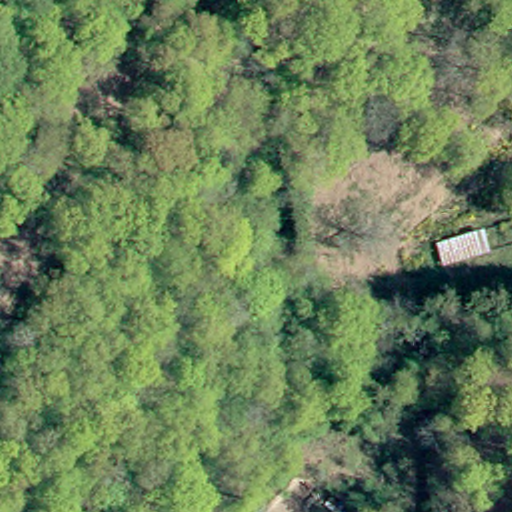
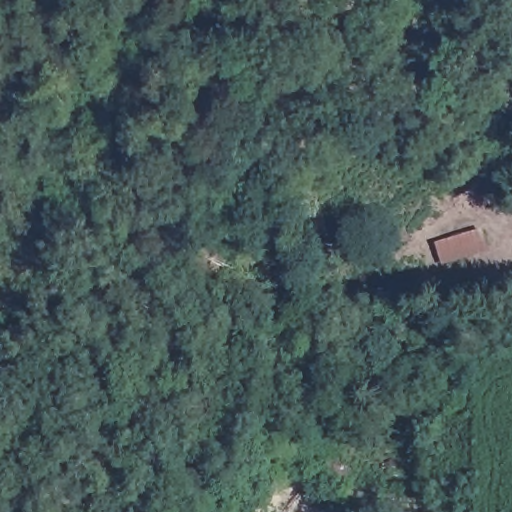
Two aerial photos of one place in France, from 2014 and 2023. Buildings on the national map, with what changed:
unchanged [(444,266),(436,239),(483,225),(489,253),(444,266)]

